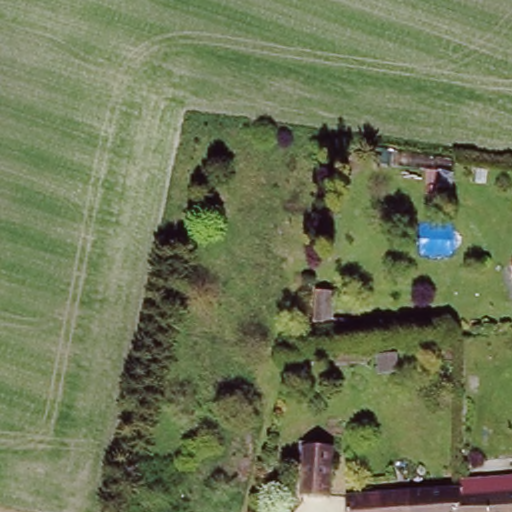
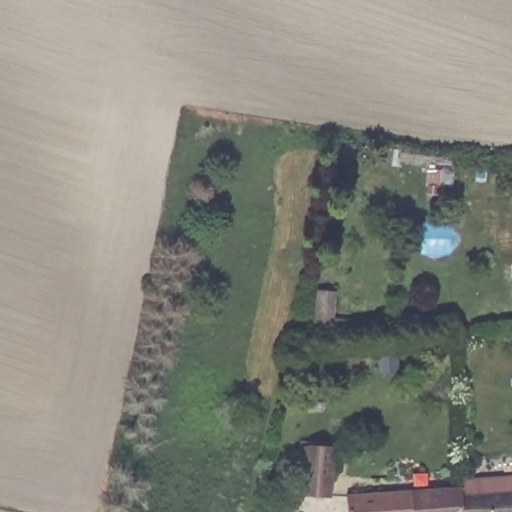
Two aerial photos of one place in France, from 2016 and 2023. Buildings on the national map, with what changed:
unchanged [(335,294),(332,325),(314,323),(317,292),(335,294)]
unchanged [(337,451),(333,497),(307,495),(311,449),(337,451)]
unchanged [(462,486),(462,478),(512,476),(512,512),(462,512),(462,486)]
unchanged [(462,512),(349,512),(349,492),(462,486),(462,512)]

